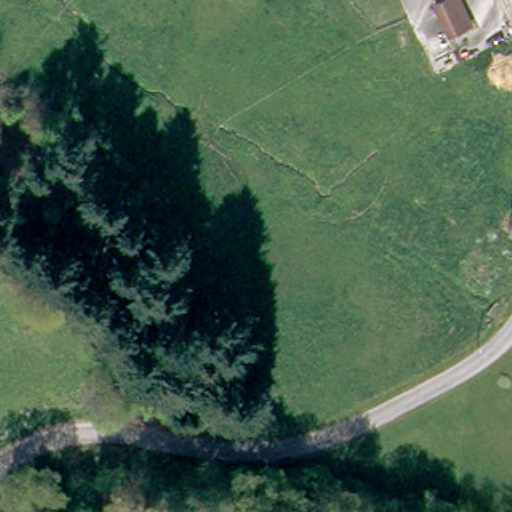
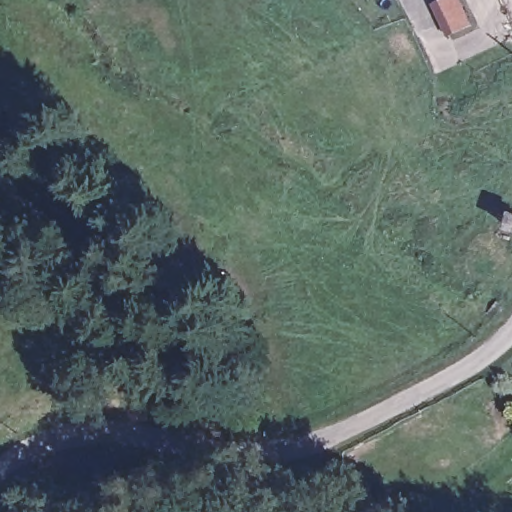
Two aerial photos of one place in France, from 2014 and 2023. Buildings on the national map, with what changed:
unchanged [(470,25),(449,35),(435,6),(450,0),(458,0),(470,25)]

